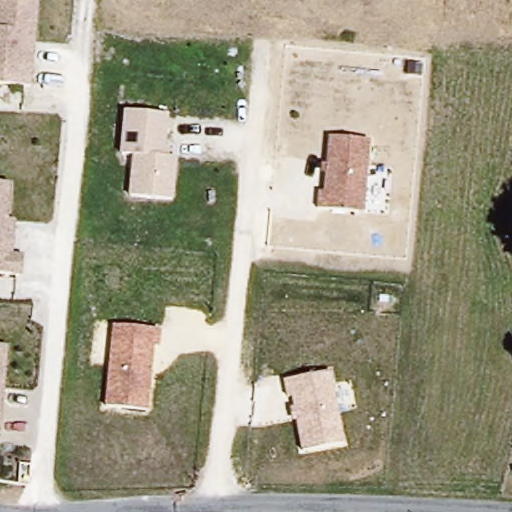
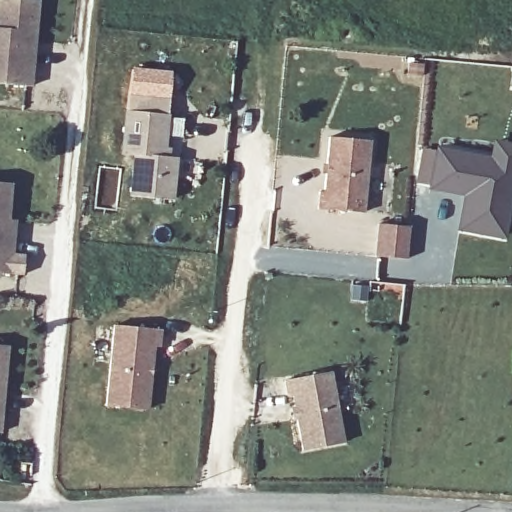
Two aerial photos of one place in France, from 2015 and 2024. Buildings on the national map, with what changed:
unchanged [(31,88),(0,85),(0,0),(14,0),(38,4),(31,88)]
unchanged [(169,114),(166,146),(170,147),(170,155),(177,158),(175,201),(127,196),(132,155),(119,151),(123,110),(169,114)]
unchanged [(372,139),(367,214),(317,209),(318,191),(324,192),(328,136),(372,139)]
new [(492,157),(493,140),(512,142),(512,194),(507,233),(462,227),(468,192),(451,189),(432,187),(437,150),(492,157)]
unchanged [(8,222),(17,223),(14,256),(25,255),(24,278),(0,277),(0,185),(12,186),(8,222)]
new [(380,223),(410,227),(407,259),(377,256),(380,223)]
unchanged [(160,348),(153,347),(147,411),(104,405),(112,325),(162,330),(160,348)]
unchanged [(2,441),(0,440),(0,346),(10,347),(2,441)]
unchanged [(344,442),(302,451),(296,419),(291,421),(283,381),(330,372),(344,442)]

